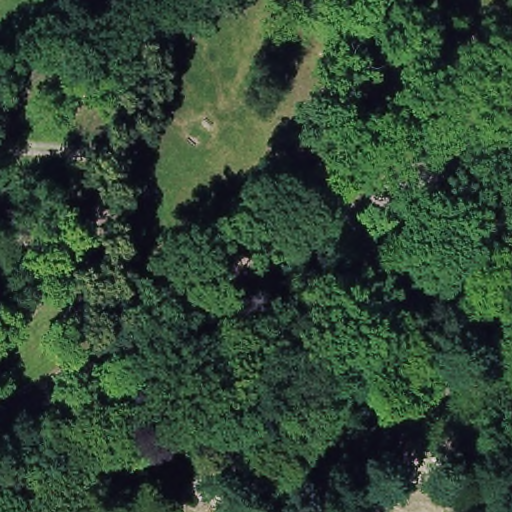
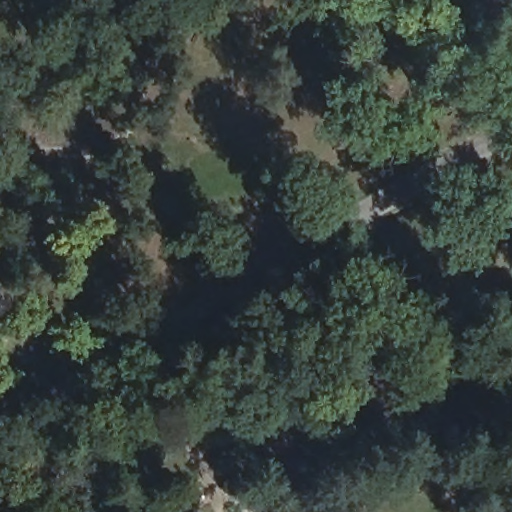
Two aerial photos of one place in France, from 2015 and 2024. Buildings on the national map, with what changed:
unchanged [(20,79),(14,71),(32,56),(38,63),(20,79)]

